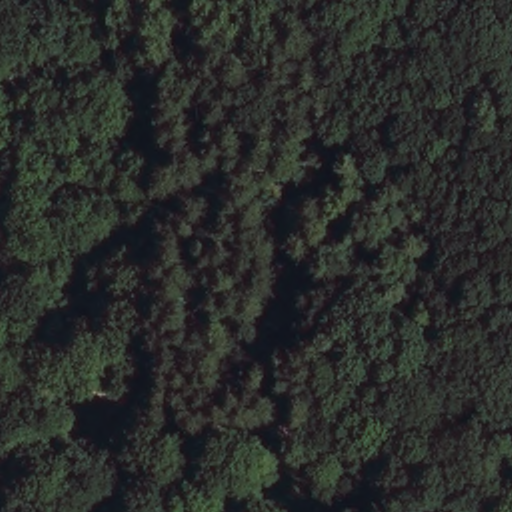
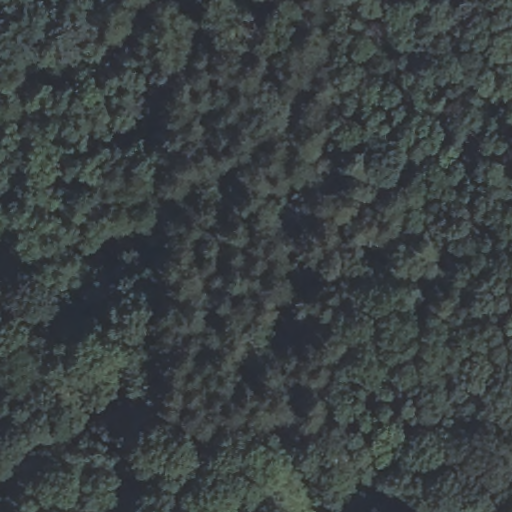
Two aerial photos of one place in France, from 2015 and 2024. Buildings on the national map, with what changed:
[]

